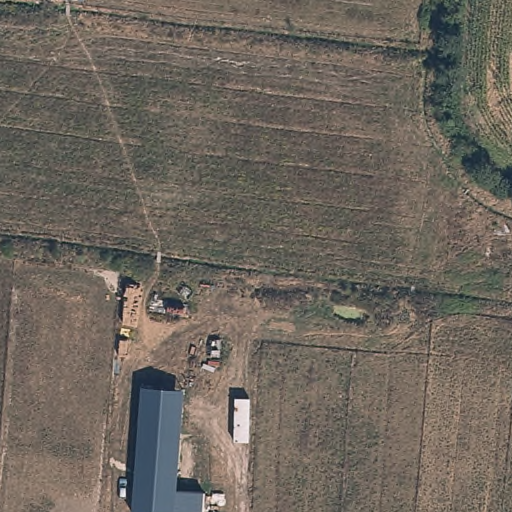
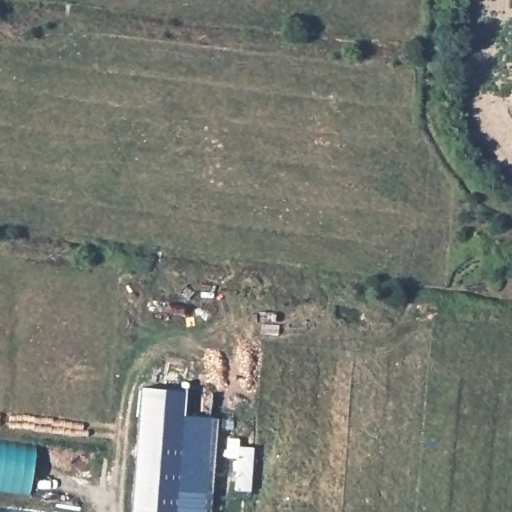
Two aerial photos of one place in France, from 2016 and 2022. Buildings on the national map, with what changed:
unchanged [(175,512),(133,512),(141,388),(185,391),(175,512)]
new [(183,414),(218,417),(211,512),(175,512),(183,414)]
new [(29,494),(0,491),(0,444),(34,448),(29,494)]

